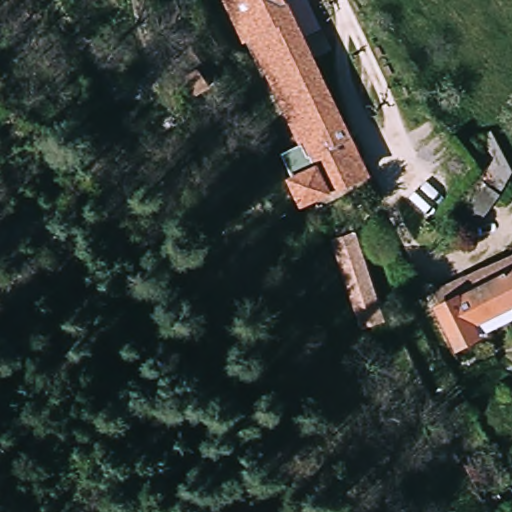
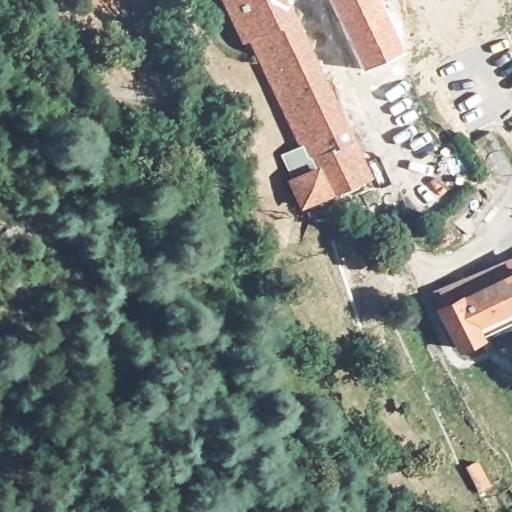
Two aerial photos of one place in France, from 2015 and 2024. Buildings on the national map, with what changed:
unchanged [(240,31),(225,0),(285,0),(373,181),(332,201),(327,193),(302,205),(289,180),(315,169),(309,156),(307,156),(246,29),(240,31)]
new [(361,70),(328,0),(380,0),(404,49),(361,70)]
unchanged [(190,99),(186,90),(181,81),(187,78),(186,75),(183,70),(186,68),(195,62),(209,87),(190,99)]
unchanged [(483,166),(468,136),(485,128),(506,169),(502,180),(494,192),(475,180),(483,166)]
unchanged [(467,234),(461,230),(447,221),(453,212),(475,180),(494,192),(467,234)]
unchanged [(327,241),(349,234),(379,322),(357,330),(327,241)]
unchanged [(433,310),(442,306),(435,291),(512,256),(512,318),(452,348),(433,310)]
unchanged [(471,463),(484,486),(474,491),(461,468),(471,463)]

